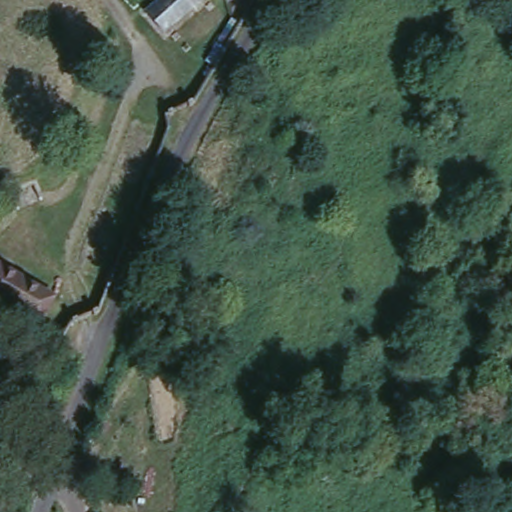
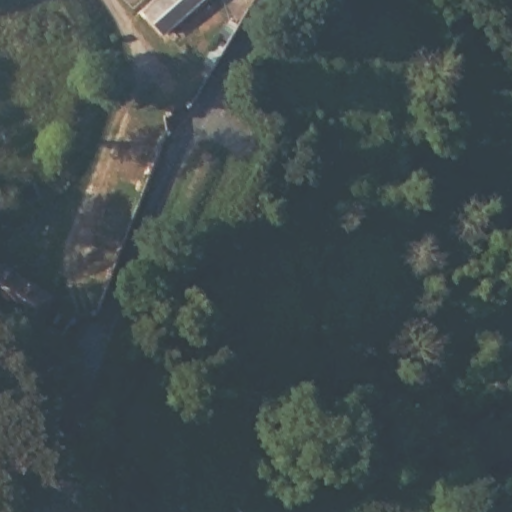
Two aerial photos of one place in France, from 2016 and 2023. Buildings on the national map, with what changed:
unchanged [(141,0),(202,0),(168,31),(137,3),(141,0)]
unchanged [(54,295),(36,325),(0,303),(0,265),(54,295)]

